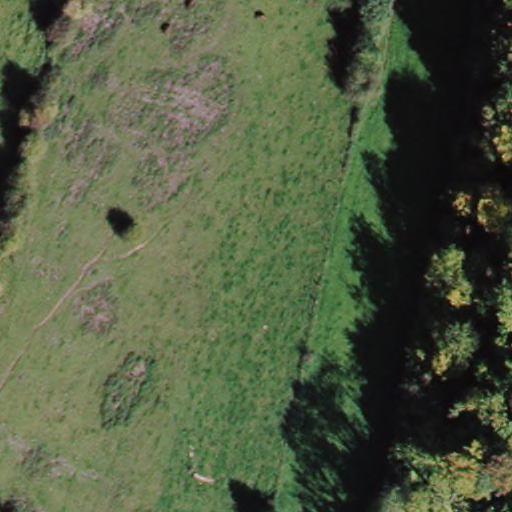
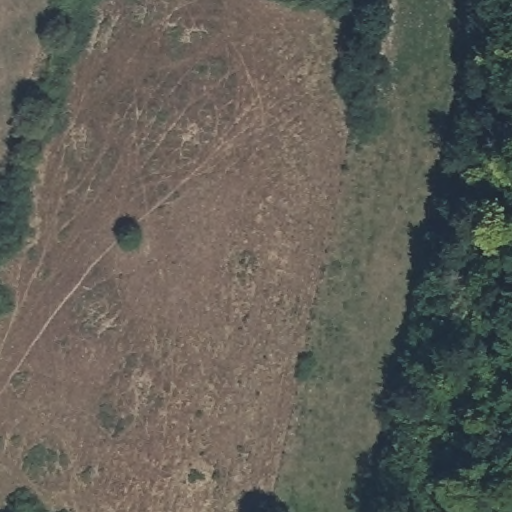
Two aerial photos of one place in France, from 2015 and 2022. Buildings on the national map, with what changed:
[]

